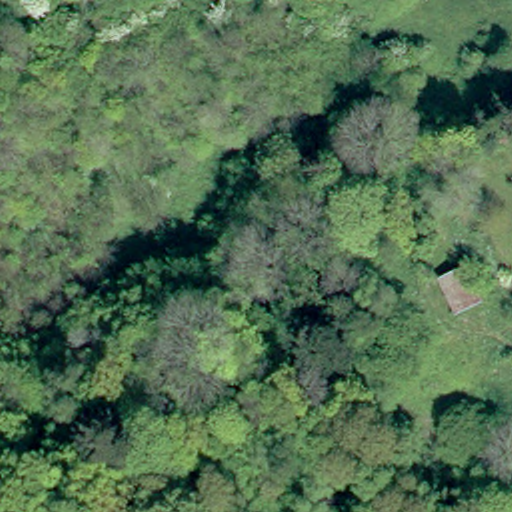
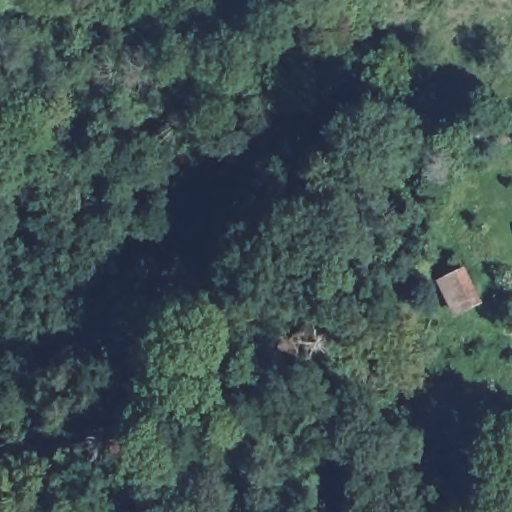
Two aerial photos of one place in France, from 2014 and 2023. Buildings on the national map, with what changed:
unchanged [(446,317),(426,284),(459,262),(477,287),(476,310),(446,317)]

